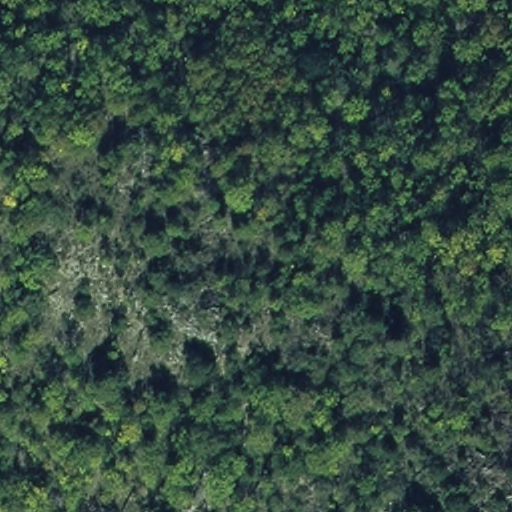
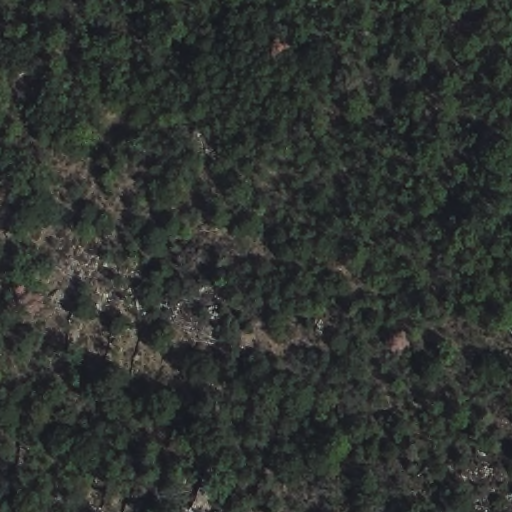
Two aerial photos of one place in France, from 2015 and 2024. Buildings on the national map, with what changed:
[]

